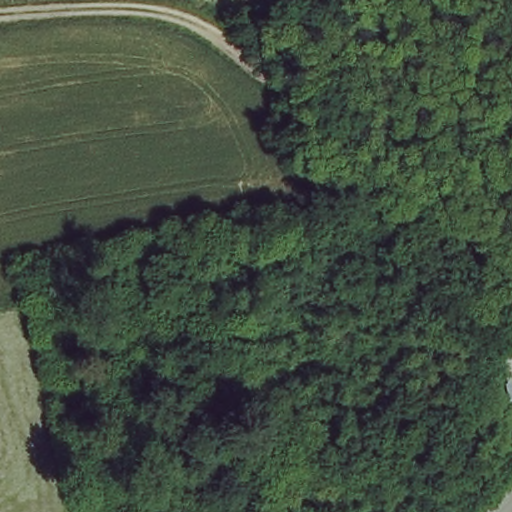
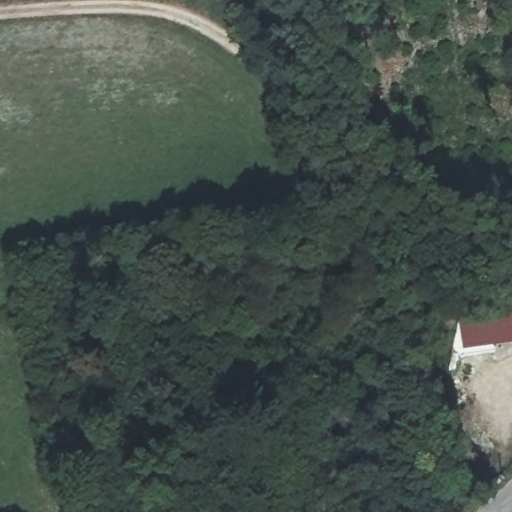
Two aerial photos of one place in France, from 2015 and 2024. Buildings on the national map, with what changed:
new [(463,349),(459,321),(512,313),(512,341),(463,349)]
demolished [(508,387),(505,354),(512,353),(512,386),(508,387)]

